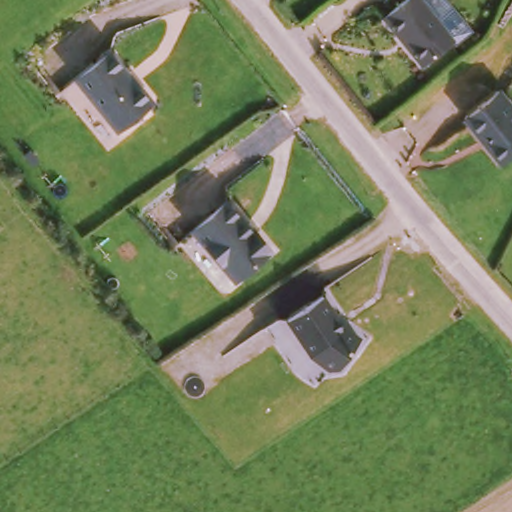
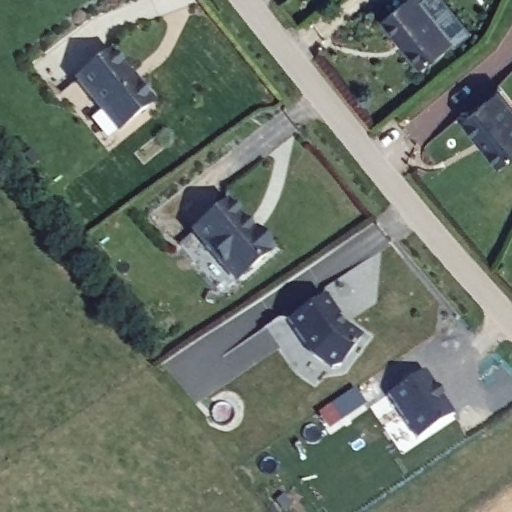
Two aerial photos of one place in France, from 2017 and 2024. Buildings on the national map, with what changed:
unchanged [(419,0),(452,44),(416,70),(381,21),(409,0),(419,0)]
unchanged [(118,130),(74,76),(110,44),(158,100),(118,130)]
unchanged [(464,117),(502,88),(512,101),(512,157),(502,165),(464,117)]
unchanged [(190,229),(228,197),(274,250),(234,282),(190,229)]
unchanged [(304,354),(286,320),(326,297),(341,324),(360,338),(328,373),(304,354)]
new [(387,398),(424,373),(436,389),(429,394),(436,404),(443,399),(453,416),(416,441),(387,398)]
new [(341,423),(331,407),(354,391),(366,407),(341,423)]

